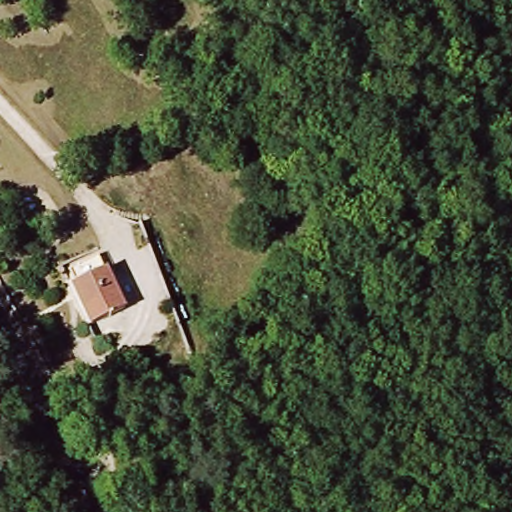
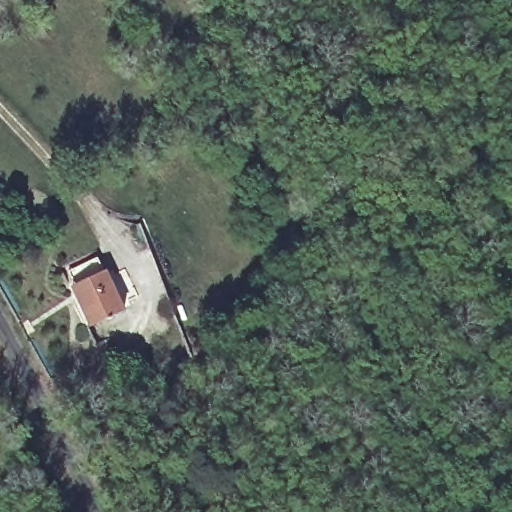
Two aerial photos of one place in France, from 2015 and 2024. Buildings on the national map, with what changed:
unchanged [(106,271),(124,315),(87,329),(70,286),(106,271)]

